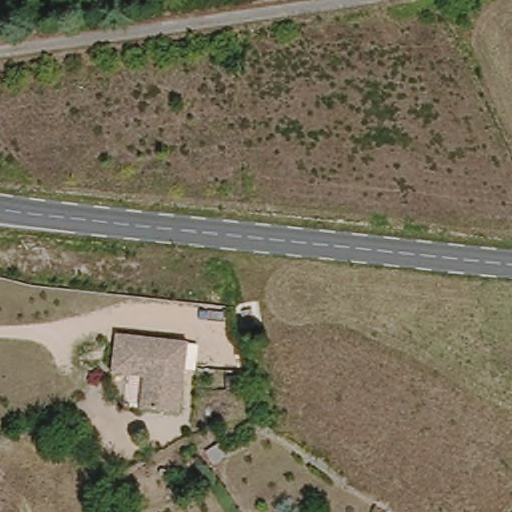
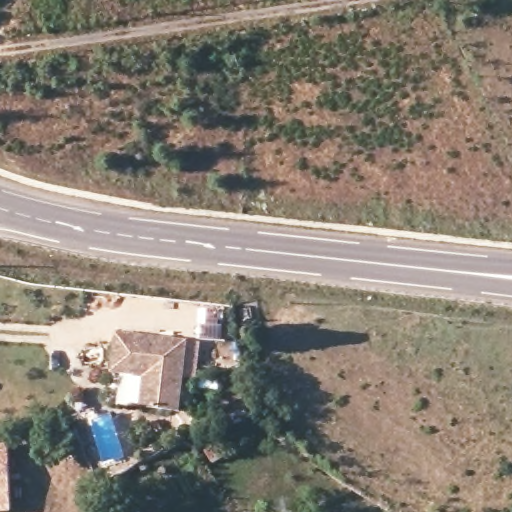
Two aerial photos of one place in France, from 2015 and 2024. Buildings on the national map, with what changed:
unchanged [(138,370),(114,366),(119,330),(191,339),(184,406),(136,403),(138,370)]
new [(10,444),(12,507),(0,507),(0,444),(10,444)]

